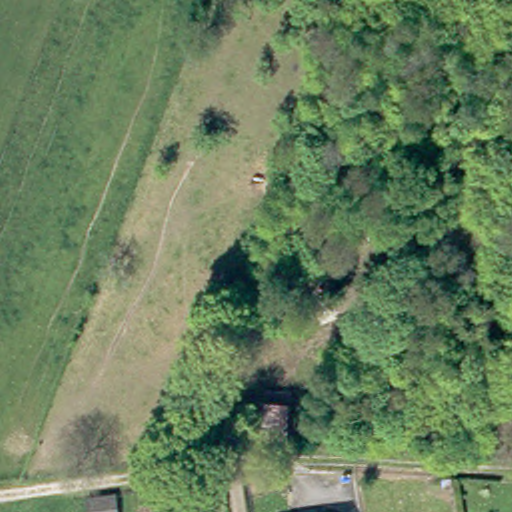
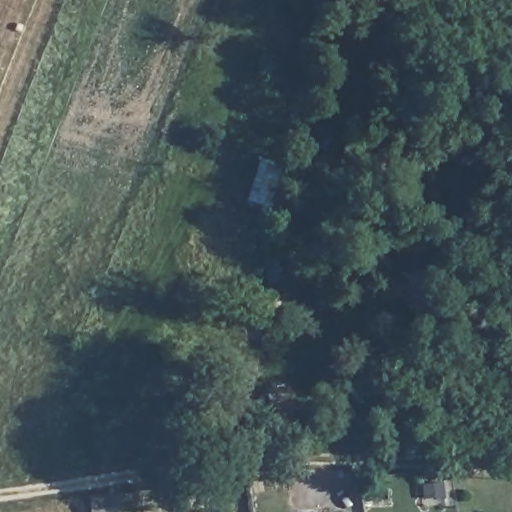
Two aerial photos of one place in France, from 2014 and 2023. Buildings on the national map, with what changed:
unchanged [(288,433),(264,432),(264,415),(289,416),(288,433)]
unchanged [(117,494),(119,512),(91,512),(89,497),(117,494)]

